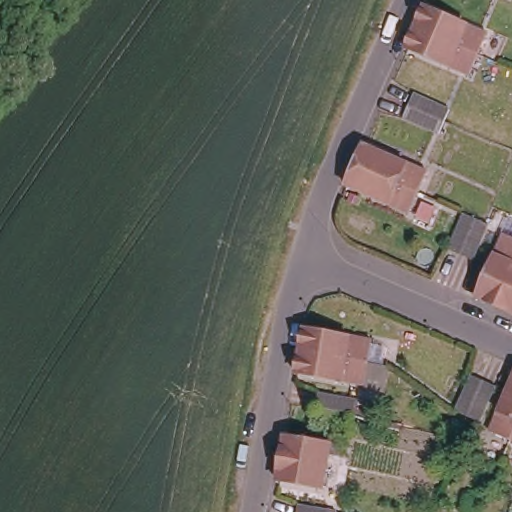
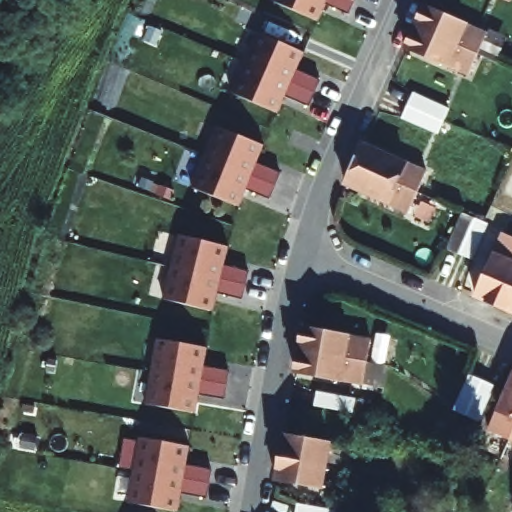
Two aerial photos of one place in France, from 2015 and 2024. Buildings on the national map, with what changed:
new [(349,12),(326,0),(318,19),(274,0),(355,0),(349,12)]
unchanged [(409,23),(418,3),(419,4),(479,31),(470,50),(409,23)]
unchanged [(461,71),(401,45),(399,44),(409,23),(470,50),(461,71)]
new [(305,52),(297,69),(319,79),(309,104),(286,94),(278,112),(231,92),(257,31),(305,52)]
unchanged [(402,115),(408,103),(412,94),(447,109),(442,118),(437,129),(402,115)]
new [(264,143),(257,160),(279,170),(269,198),(246,187),(239,205),(191,185),(216,123),(264,143)]
unchanged [(344,161),(353,141),(354,142),(414,169),(405,188),(344,161)]
unchanged [(396,210),(335,183),(344,161),(405,188),(396,210)]
unchanged [(445,246),(462,211),(476,217),(483,220),(487,222),(471,257),(467,256),(445,246)]
unchanged [(476,295),(503,232),(512,236),(512,264),(495,303),(476,295)]
new [(228,245),(225,265),(248,270),(243,296),(218,289),(214,308),(163,296),(178,233),(228,245)]
unchanged [(512,264),(512,310),(495,303),(512,264)]
unchanged [(289,342),(293,322),(359,335),(355,356),(289,342)]
new [(208,345),(204,365),(228,368),(224,396),(200,390),(197,411),(146,401),(157,337),(208,345)]
unchanged [(351,380),(285,366),(289,342),(355,356),(351,380)]
unchanged [(492,384),(478,418),(473,416),(453,407),(464,382),(467,374),(487,382),(492,384)]
unchanged [(512,376),(512,433),(510,438),(488,428),(512,376)]
unchanged [(354,400),(351,414),(314,406),(316,391),(354,400)]
unchanged [(341,485),(276,472),(280,450),(281,447),(284,430),(329,439),(326,460),(346,464),(341,485)]
unchanged [(512,439),(510,438),(512,433),(512,439)]
new [(189,442),(186,463),(212,468),(208,495),(182,489),(178,511),(128,501),(139,434),(189,442)]
unchanged [(298,500),(334,507),(334,512),(295,512),(296,511),(298,500)]

